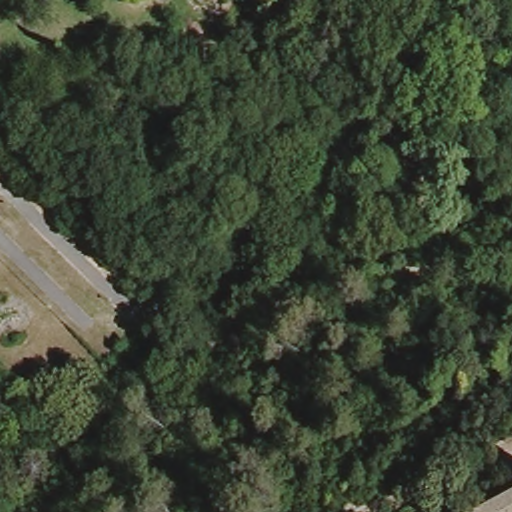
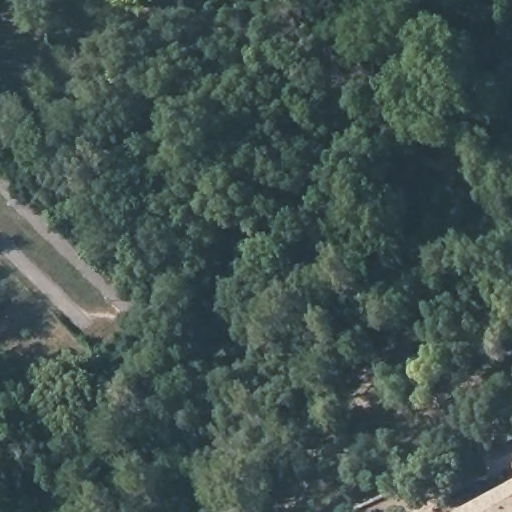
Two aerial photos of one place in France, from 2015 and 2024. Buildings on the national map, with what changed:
unchanged [(481,512),(512,495),(512,512),(481,512)]

